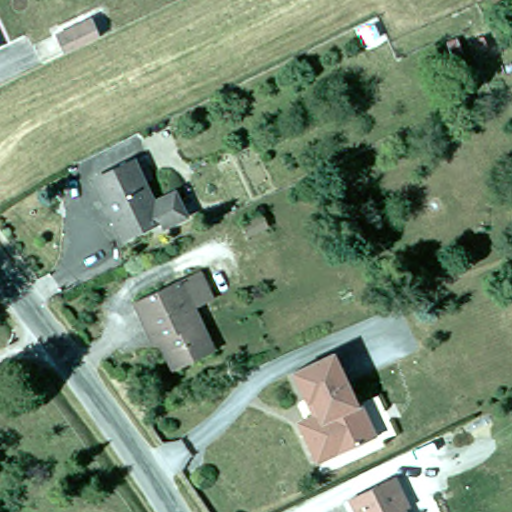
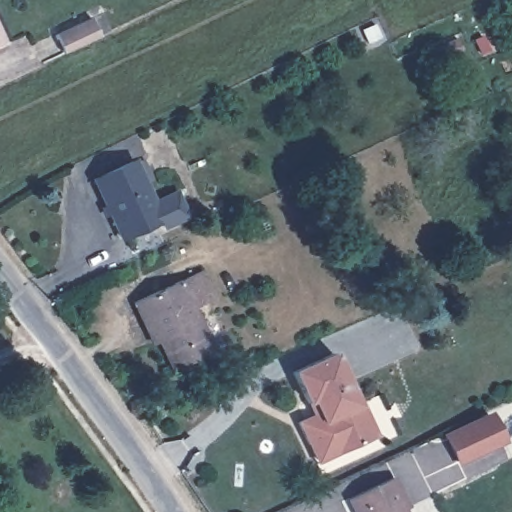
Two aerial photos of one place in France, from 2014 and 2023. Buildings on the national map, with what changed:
unchanged [(57,32),(93,15),(101,33),(65,50),(57,32)]
unchanged [(131,155),(139,152),(148,170),(139,174),(149,195),(170,185),(180,209),(158,218),(155,213),(119,232),(91,171),(129,153),(131,155)]
unchanged [(265,229),(246,237),(241,225),(260,217),(265,229)]
unchanged [(151,329),(134,294),(198,264),(211,290),(192,299),(213,342),(179,359),(165,330),(154,335),(151,329)]
unchanged [(307,445),(296,423),(312,416),(306,404),(291,373),(332,355),(356,405),(359,404),(374,437),(335,455),(315,464),(307,445)]
new [(506,443),(457,467),(441,433),(491,410),(506,443)]
unchanged [(402,510),(403,512),(354,512),(349,500),(393,478),(407,508),(402,510)]

